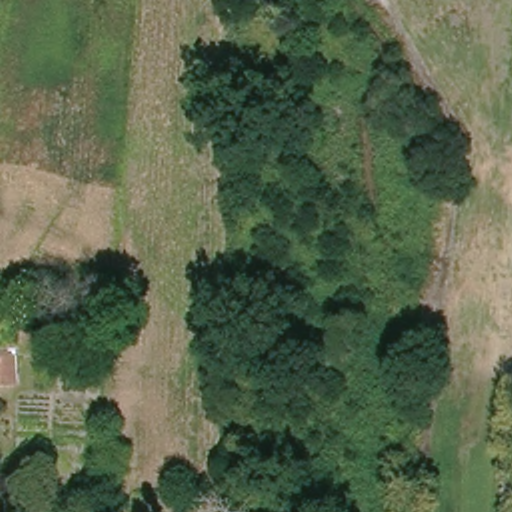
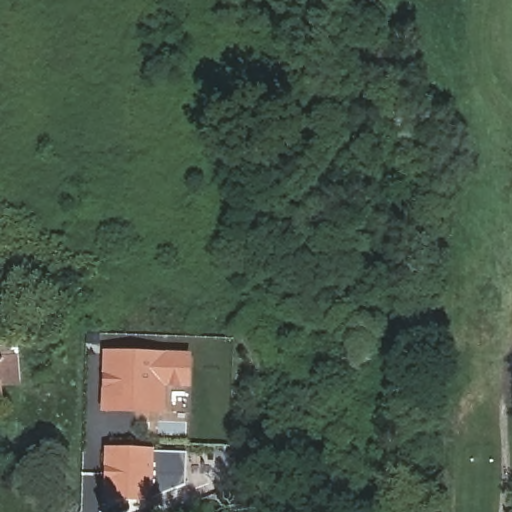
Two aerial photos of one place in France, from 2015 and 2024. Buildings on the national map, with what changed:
unchanged [(23,383),(4,384),(5,395),(0,395),(0,355),(1,355),(1,348),(20,346),(20,354),(23,383)]
new [(187,358),(186,387),(161,385),(160,413),(102,411),(105,355),(187,358)]
new [(185,454),(185,487),(147,501),(105,500),(106,451),(185,454)]

